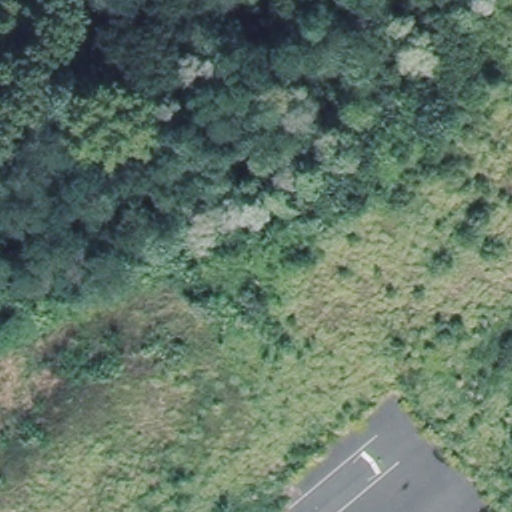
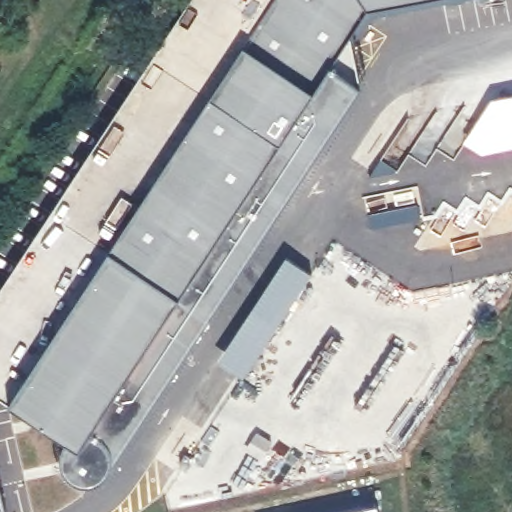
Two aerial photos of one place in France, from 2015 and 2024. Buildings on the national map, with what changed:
new [(191,0),(276,0),(243,48),(109,252),(8,406),(0,401),(0,292),(191,0)]
new [(368,10),(351,36),(359,87),(112,465),(98,482),(83,483),(70,479),(64,465),(63,454),(64,445),(8,406),(109,252),(243,48),(276,0),(418,0),(368,10)]
new [(512,97),(512,148),(485,154),(466,142),(491,101),(512,97)]
new [(244,377),(218,361),(286,258),(311,274),(244,377)]
new [(0,512),(0,482),(8,512),(0,512)]
new [(378,512),(348,512),(377,505),(378,512)]

